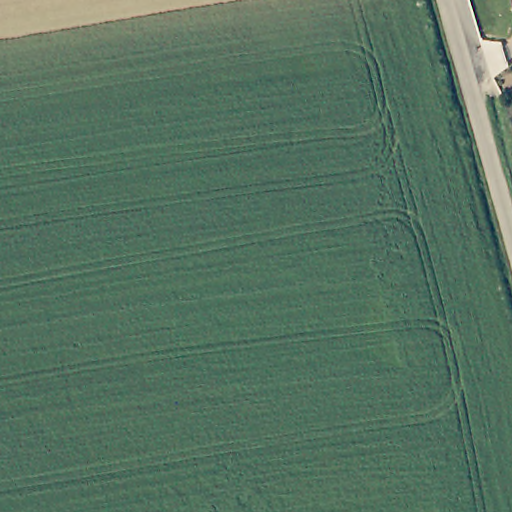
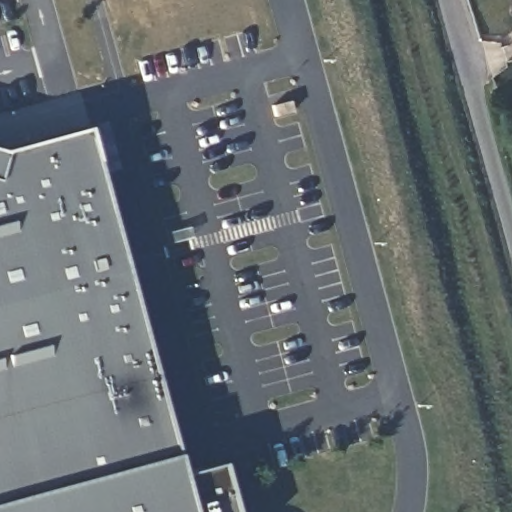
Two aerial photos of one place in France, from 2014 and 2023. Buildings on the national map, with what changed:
new [(2,152),(84,129),(178,477),(220,464),(233,512),(0,512),(0,151),(2,152)]

